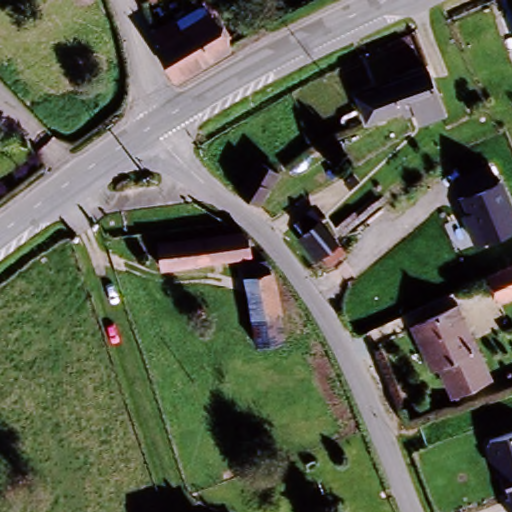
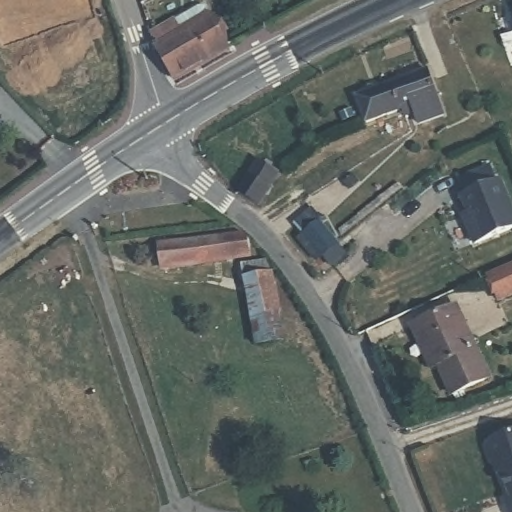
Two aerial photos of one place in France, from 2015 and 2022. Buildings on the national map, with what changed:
unchanged [(153,54),(151,40),(158,36),(204,13),(211,25),(229,56),(204,71),(173,87),(153,54)]
unchanged [(512,23),(511,21),(512,21),(512,23)]
unchanged [(411,106),(362,124),(353,99),(427,74),(435,99),(442,119),(418,127),(411,106)]
unchanged [(274,176),(256,207),(236,195),(254,165),(274,176)]
unchanged [(512,231),(459,250),(452,234),(466,229),(456,197),(463,195),(456,179),(489,165),(512,212),(512,231)]
unchanged [(299,235),(314,222),(341,252),(326,265),(299,235)]
unchanged [(245,256),(158,268),(155,245),(242,235),(245,256)]
unchanged [(279,266),(287,301),(276,303),(284,342),(254,348),(236,266),(266,260),(270,270),(279,266)]
unchanged [(487,278),(512,267),(512,296),(499,302),(487,278)]
unchanged [(431,369),(413,326),(458,307),(489,380),(449,396),(437,366),(431,369)]
unchanged [(512,512),(507,512),(484,443),(512,432),(512,512)]

